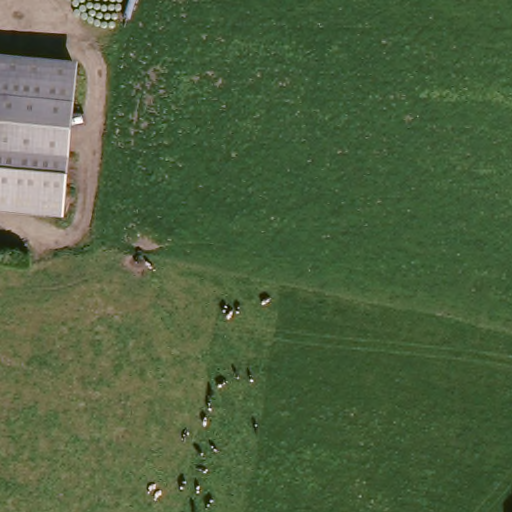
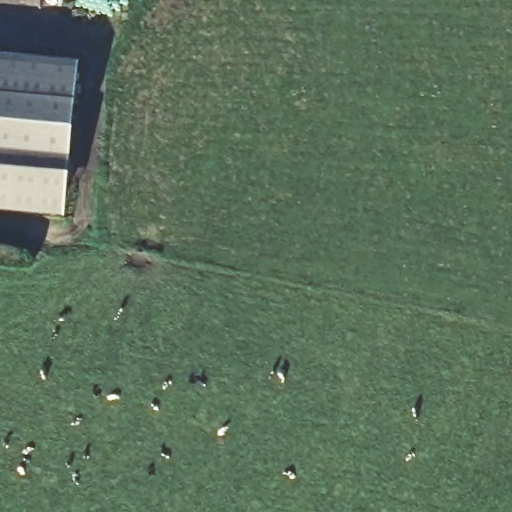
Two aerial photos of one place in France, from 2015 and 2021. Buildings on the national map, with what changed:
unchanged [(64,219),(0,213),(0,56),(79,63),(64,219)]

